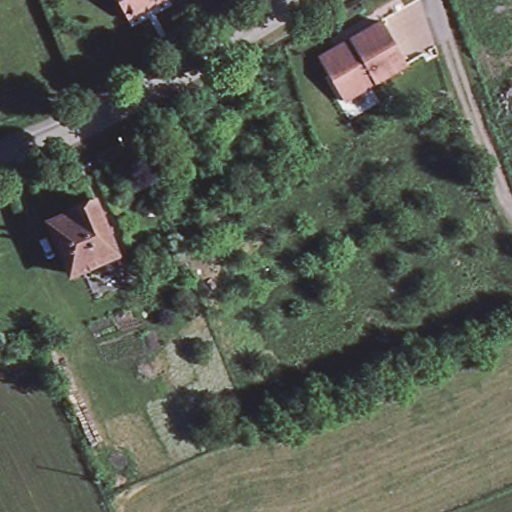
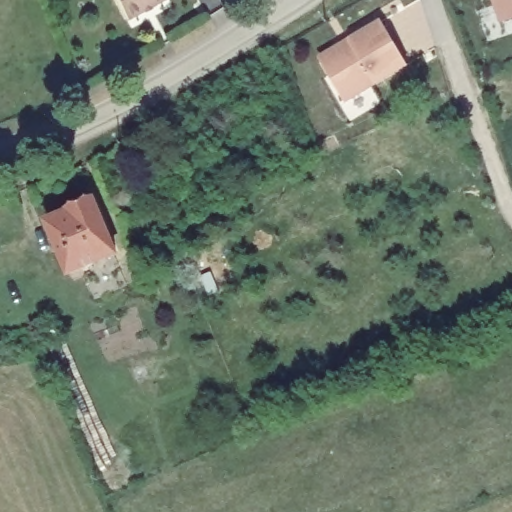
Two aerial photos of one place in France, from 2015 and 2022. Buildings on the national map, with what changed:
unchanged [(132,16),(123,0),(164,0),(132,16)]
new [(500,24),(492,0),(512,0),(512,20),(500,24)]
unchanged [(322,59),(335,51),(342,52),(352,47),(349,42),(380,23),(406,66),(345,104),(321,66),(322,59)]
unchanged [(70,212),(69,210),(93,201),(115,255),(113,256),(82,269),(70,274),(48,222),(70,212)]

